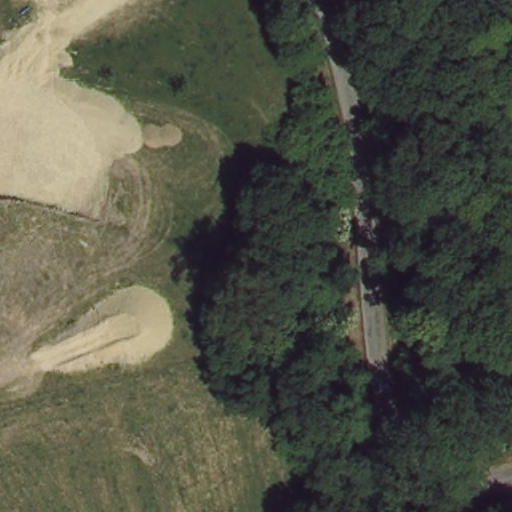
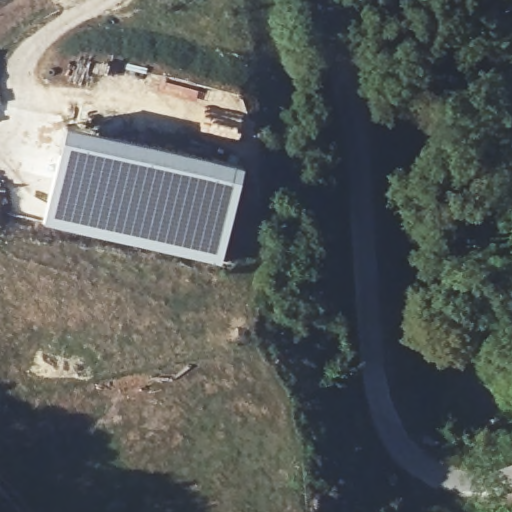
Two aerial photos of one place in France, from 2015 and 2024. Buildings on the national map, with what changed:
new [(65,124),(243,163),(221,262),(43,225),(65,124)]

